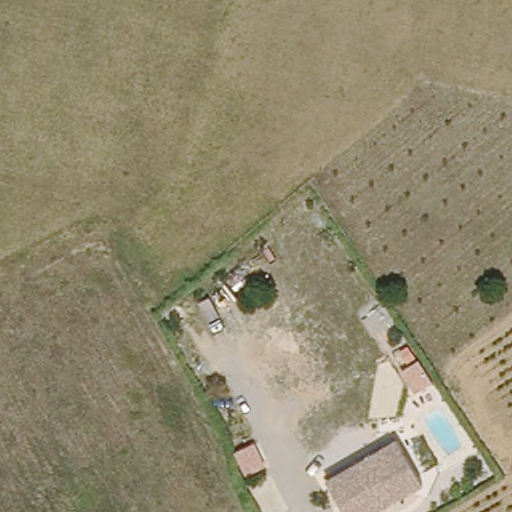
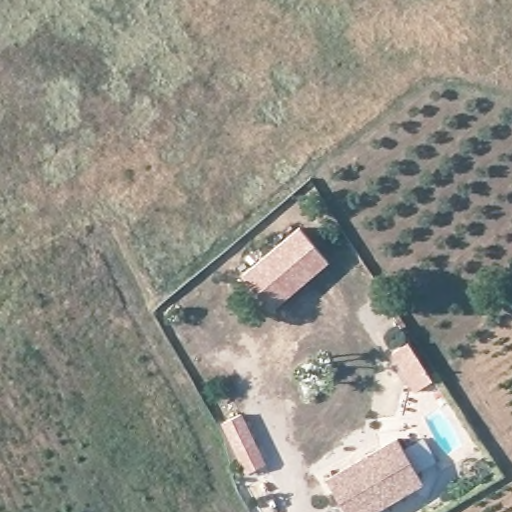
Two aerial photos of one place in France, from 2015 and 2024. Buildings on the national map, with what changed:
new [(330,265),(273,312),(242,275),(300,228),(330,265)]
new [(268,465),(245,475),(223,425),(243,415),(268,465)]
unchanged [(427,481),(372,512),(351,512),(331,477),(401,437),(427,481)]

